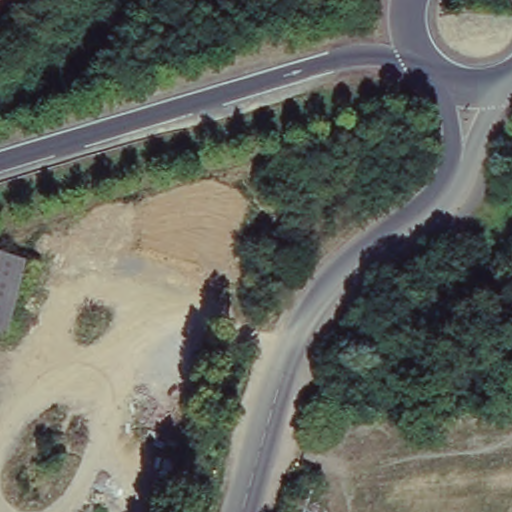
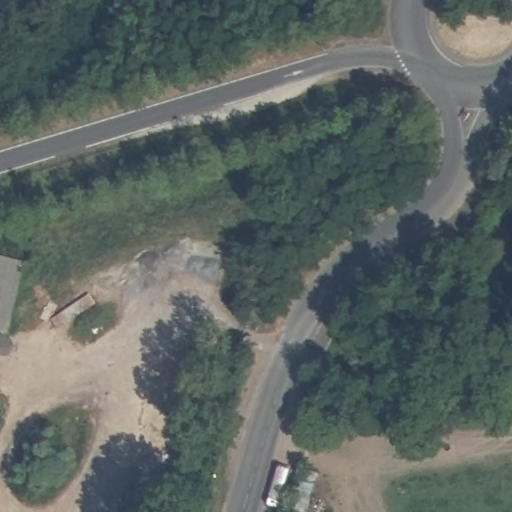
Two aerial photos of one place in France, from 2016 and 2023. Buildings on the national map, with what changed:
unchanged [(29,261),(11,335),(0,332),(0,253),(29,261)]

